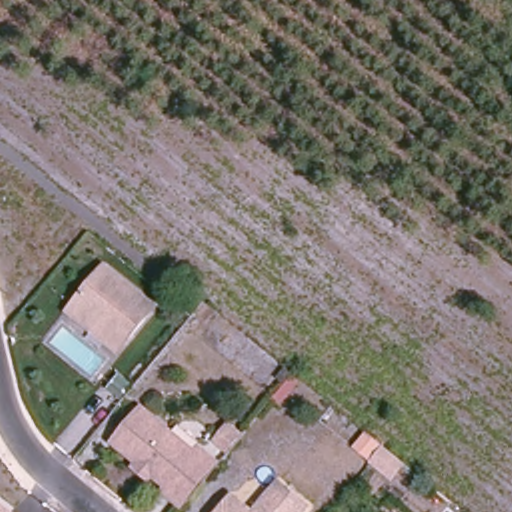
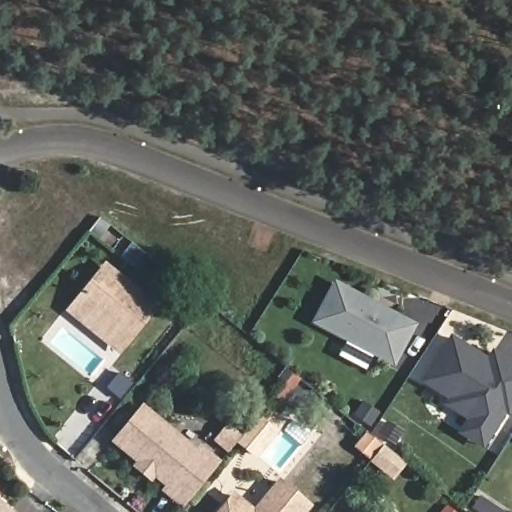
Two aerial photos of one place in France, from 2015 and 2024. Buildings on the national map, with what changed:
unchanged [(104,265),(157,307),(117,356),(65,312),(104,265)]
new [(393,368),(308,324),(332,280),(416,323),(393,368)]
new [(505,416),(482,451),(456,433),(465,421),(442,405),(445,401),(415,381),(449,332),(485,356),(490,349),(512,363),(512,410),(507,418),(505,416)]
unchanged [(180,509),(173,503),(161,492),(165,487),(153,477),(149,482),(133,468),(137,463),(114,442),(140,405),(191,450),(194,446),(206,456),(212,462),(180,509)]
unchanged [(308,497),(297,512),(250,512),(276,477),(308,497)]
unchanged [(249,512),(217,512),(227,498),(249,512)]
unchanged [(8,512),(0,512),(0,505),(8,512)]

